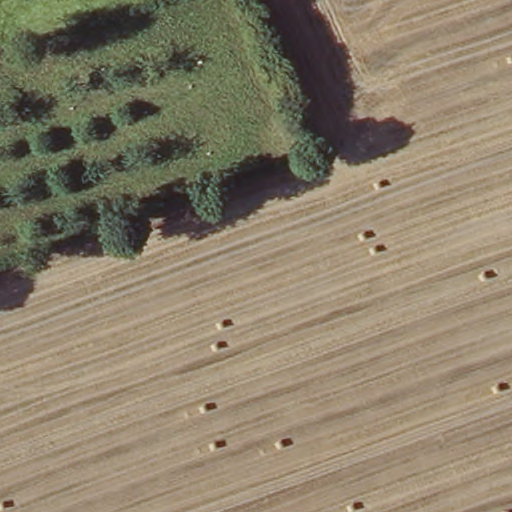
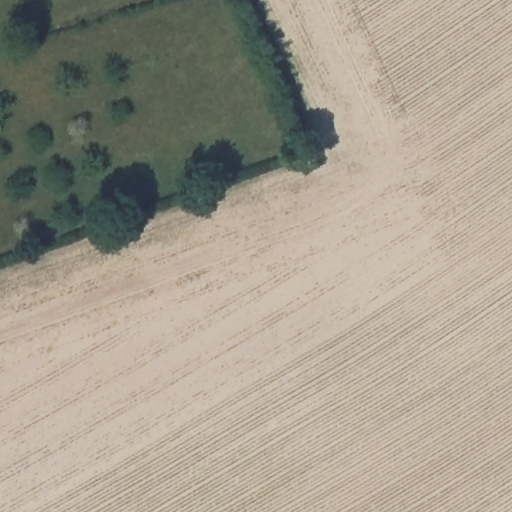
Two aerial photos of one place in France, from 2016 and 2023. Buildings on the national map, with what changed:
[]

